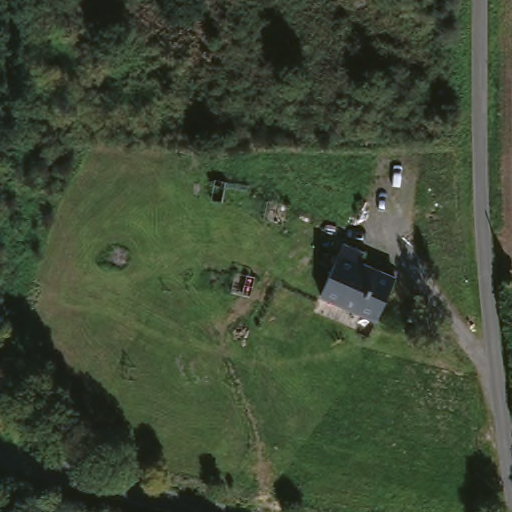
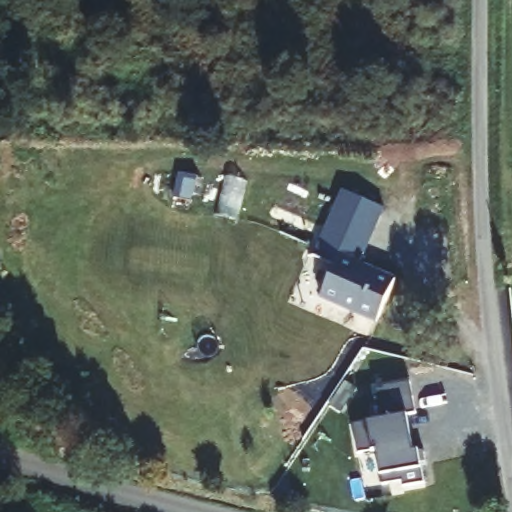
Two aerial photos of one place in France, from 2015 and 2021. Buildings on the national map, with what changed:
new [(312,255),(341,189),(385,206),(366,251),(345,245),(337,266),(312,255)]
unchanged [(385,318),(327,298),(345,245),(366,251),(363,261),(400,274),(385,318)]
new [(379,422),(373,390),(408,385),(413,417),(405,418),(408,438),(396,440),(400,456),(416,453),(422,486),(401,490),(400,485),(380,488),(374,453),(356,457),(350,427),(379,422)]

